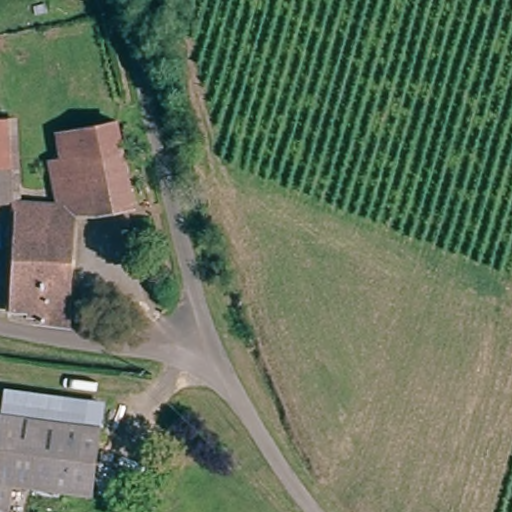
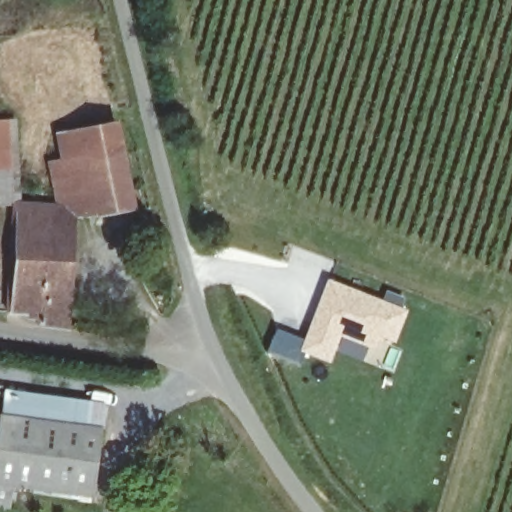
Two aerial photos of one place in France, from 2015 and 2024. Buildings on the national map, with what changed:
unchanged [(60,202),(51,162),(67,157),(59,130),(114,116),(137,199),(109,208),(77,204),(60,202)]
unchanged [(9,201),(0,201),(0,120),(6,120),(9,201)]
unchanged [(4,305),(9,229),(0,227),(0,201),(9,201),(60,202),(77,204),(71,305),(71,321),(39,321),(37,305),(4,305)]
new [(409,308),(395,343),(381,337),(374,350),(341,337),(330,363),(300,352),(328,280),(409,308)]
unchanged [(0,421),(5,399),(103,422),(89,487),(14,473),(9,495),(0,493),(0,421)]

